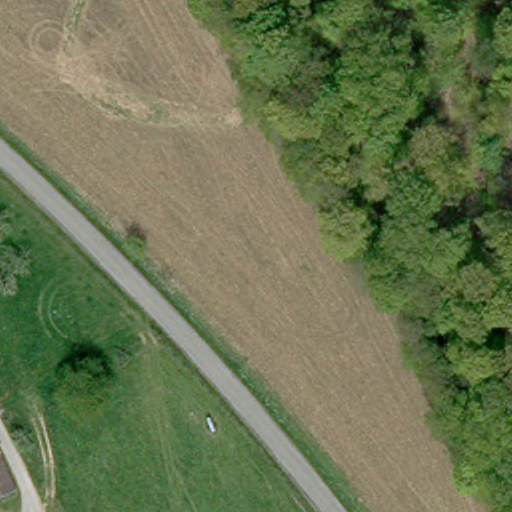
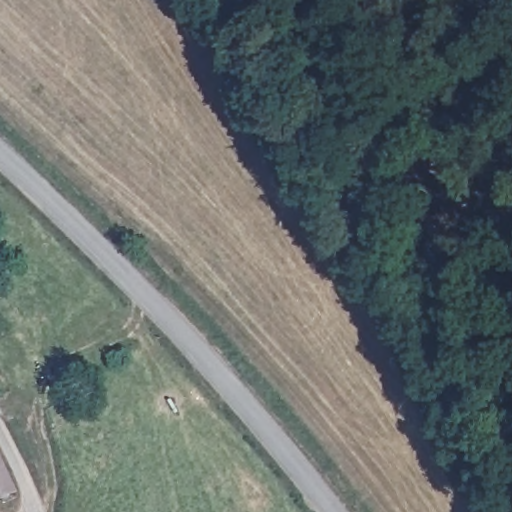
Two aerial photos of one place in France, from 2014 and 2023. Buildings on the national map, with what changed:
unchanged [(24,505),(8,511),(0,493),(0,455),(24,505)]

